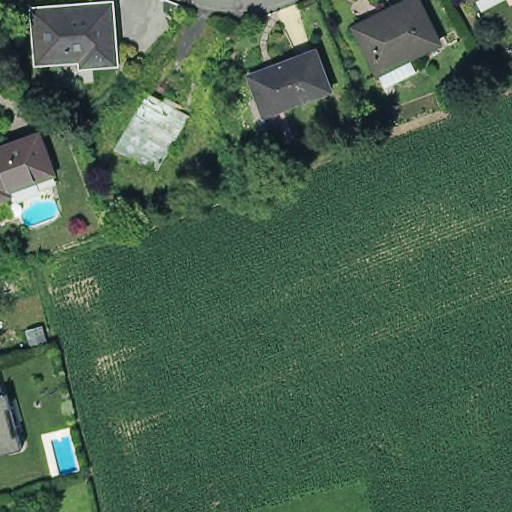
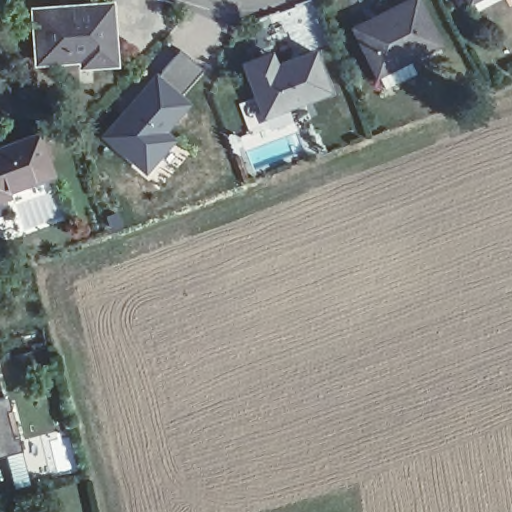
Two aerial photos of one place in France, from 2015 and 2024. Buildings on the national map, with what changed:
unchanged [(96,44),(52,47),(50,29),(40,29),(39,5),(104,0),(117,0),(122,59),(97,61),(96,44)]
unchanged [(355,28),(411,0),(418,0),(440,44),(378,75),(355,28)]
unchanged [(275,111),(260,72),(325,47),(340,86),(275,111)]
new [(135,109),(132,106),(157,77),(157,78),(182,51),(204,70),(180,98),(188,105),(164,133),(173,141),(147,172),(108,140),(135,109)]
demolished [(119,156),(152,98),(169,107),(168,107),(195,122),(171,164),(165,161),(157,177),(119,156)]
unchanged [(12,192),(14,197),(0,202),(0,151),(44,135),(58,175),(12,192)]
unchanged [(22,455),(0,459),(0,383),(7,411),(13,441),(18,440),(22,455)]

